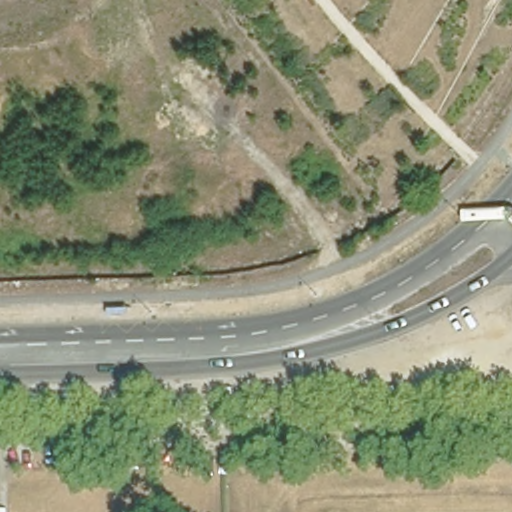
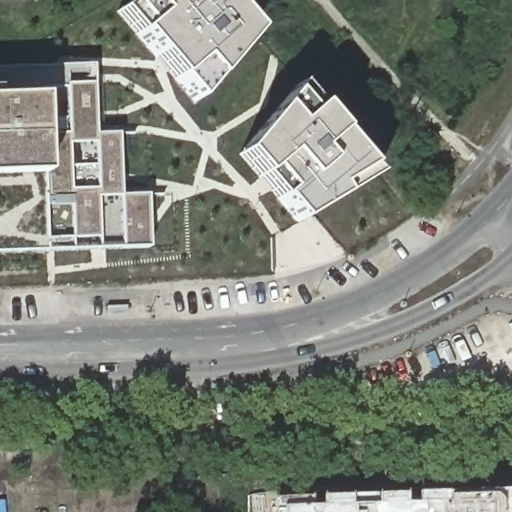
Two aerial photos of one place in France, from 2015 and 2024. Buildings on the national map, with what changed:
new [(197,101),(120,11),(143,0),(228,0),(257,34),(197,101)]
new [(82,130),(102,131),(107,194),(134,194),(134,245),(0,248),(0,67),(76,64),(82,130)]
new [(380,171),(305,219),(250,155),(301,86),(380,171)]
new [(267,499),(512,491),(512,512),(267,512),(267,499)]

